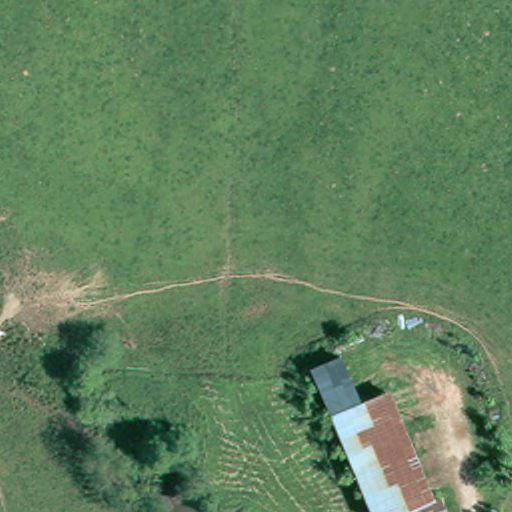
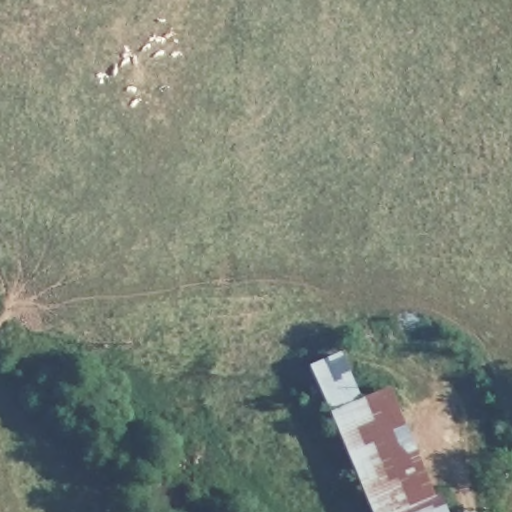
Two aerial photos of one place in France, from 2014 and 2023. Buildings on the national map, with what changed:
unchanged [(400,512),(373,512),(312,367),(342,354),(362,399),(390,387),(437,499),(425,504),(400,512)]
unchanged [(450,495),(455,512),(400,512),(437,499),(450,495)]

